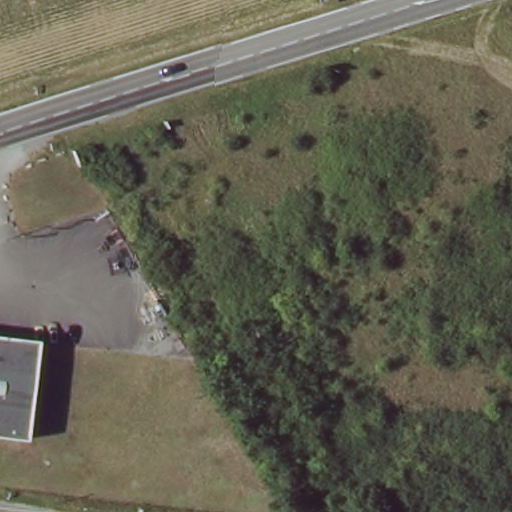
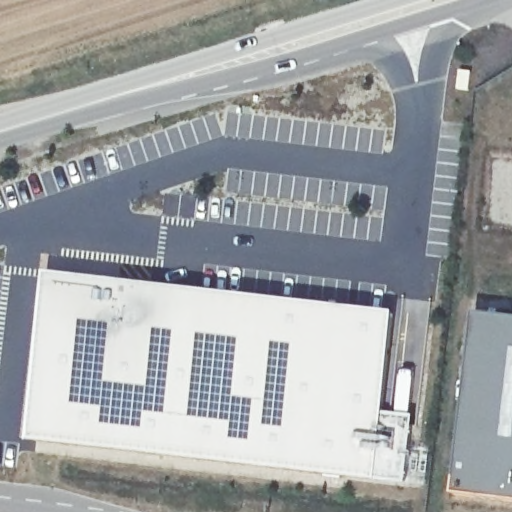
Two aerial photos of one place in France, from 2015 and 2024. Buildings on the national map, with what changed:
new [(27,440),(46,272),(395,313),(385,413),(413,416),(405,484),(27,440)]
new [(512,317),(512,502),(454,495),(477,313),(512,317)]
demolished [(43,340),(34,440),(0,437),(0,336),(43,340)]

